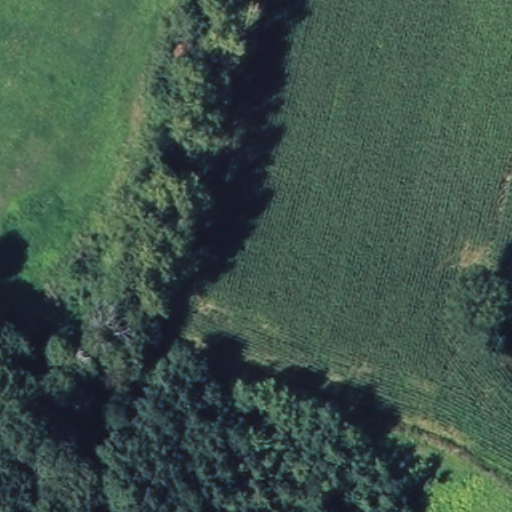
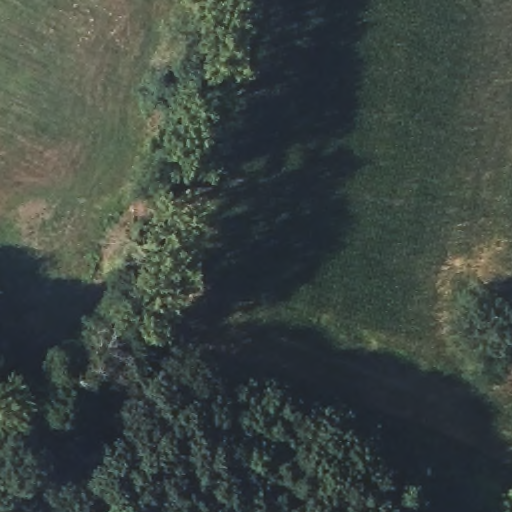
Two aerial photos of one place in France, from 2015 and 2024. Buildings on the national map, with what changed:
[]

